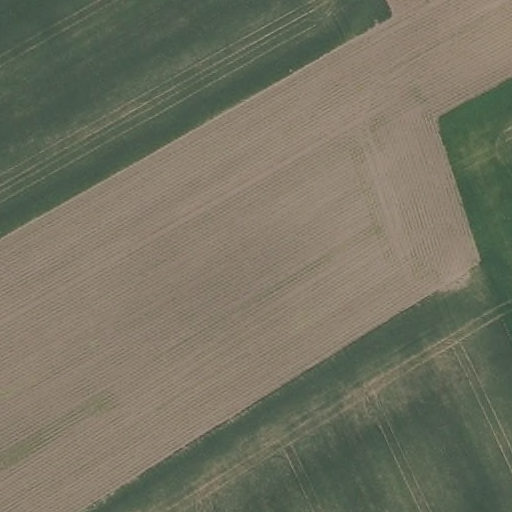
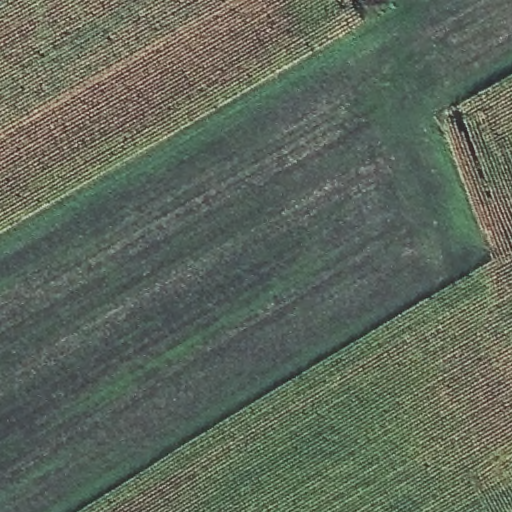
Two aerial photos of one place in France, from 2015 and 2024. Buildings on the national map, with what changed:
[]

